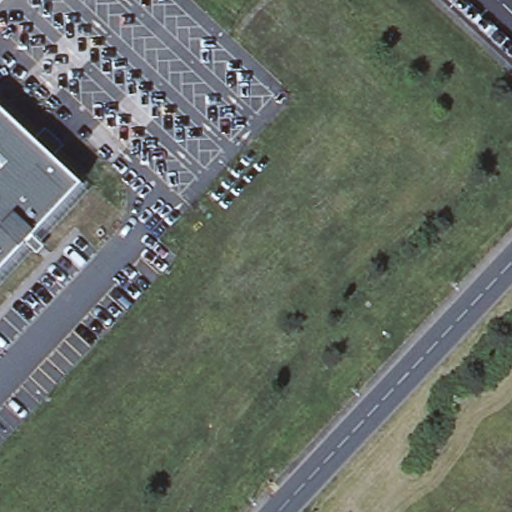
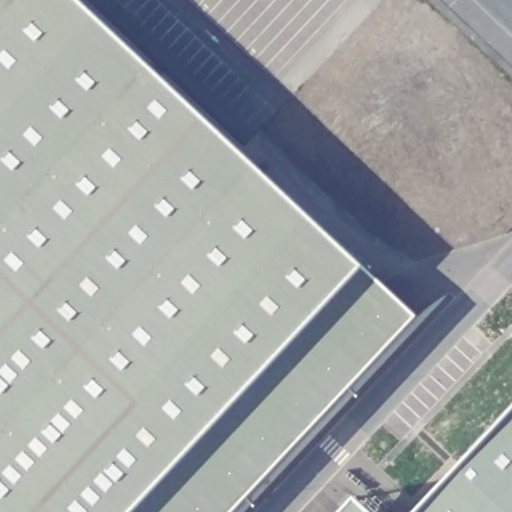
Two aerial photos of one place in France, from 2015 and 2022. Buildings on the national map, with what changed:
new [(78,0),(412,321),(235,512),(0,512),(0,0),(78,0)]
demolished [(195,0),(241,0),(218,22),(195,0)]
demolished [(79,182),(0,268),(0,109),(79,182)]
new [(512,512),(413,512),(512,407),(512,512)]

